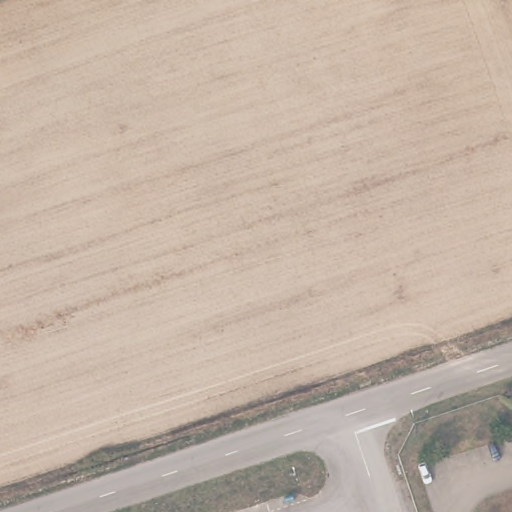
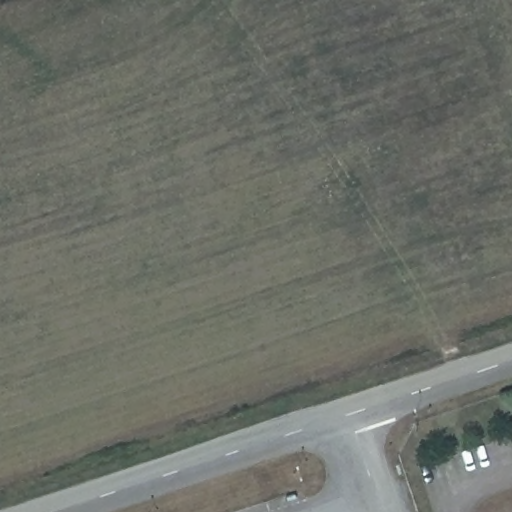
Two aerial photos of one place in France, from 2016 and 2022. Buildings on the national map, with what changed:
[]

